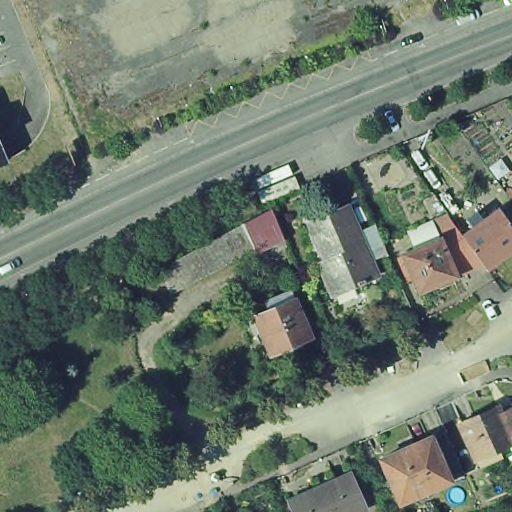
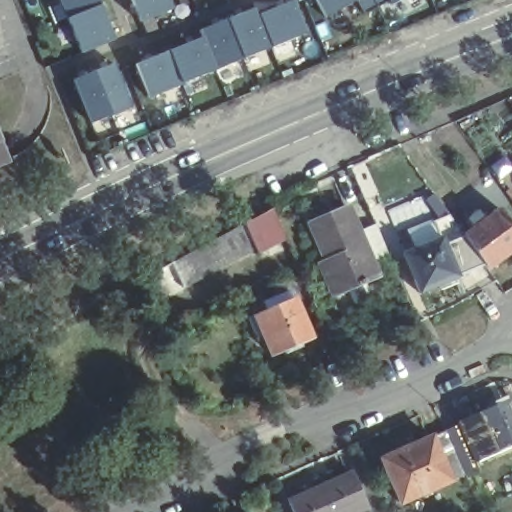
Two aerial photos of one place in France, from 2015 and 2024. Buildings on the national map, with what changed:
new [(113,39),(81,53),(67,19),(59,0),(99,0),(101,5),(113,39)]
new [(140,22),(131,0),(169,0),(172,8),(140,22)]
new [(305,33),(270,48),(217,69),(147,97),(133,64),(203,37),(200,30),(252,8),(257,16),(292,0),(305,33)]
new [(357,0),(325,18),(315,0),(401,0),(391,5),(388,1),(377,7),(363,13),(357,0)]
new [(129,107),(90,124),(72,80),(112,63),(129,107)]
unchanged [(0,147),(5,161),(0,163),(0,147)]
unchanged [(365,275),(367,277),(358,280),(357,278),(333,289),(321,260),(327,257),(310,220),(348,203),(369,251),(365,253),(372,272),(365,275)]
unchanged [(167,265),(244,224),(272,209),(283,236),(256,250),(255,249),(170,294),(165,279),(157,282),(153,272),(160,269),(167,265)]
unchanged [(484,265),(463,236),(473,229),(470,224),(480,216),(484,221),(500,209),(512,226),(512,251),(487,269),(484,265)]
unchanged [(448,215),(463,236),(484,265),(457,276),(440,239),(440,240),(432,222),(448,215)]
unchanged [(402,267),(408,264),(404,255),(440,240),(440,239),(457,276),(452,278),(455,283),(440,288),(438,284),(420,292),(414,279),(408,281),(402,267)]
unchanged [(277,355),(267,331),(260,334),(253,318),(260,316),(281,307),(278,300),(296,292),(299,299),(316,338),(277,355)]
unchanged [(458,424),(498,406),(503,418),(512,414),(512,445),(475,461),(458,424)]
unchanged [(381,460),(432,437),(445,431),(465,474),(464,475),(450,481),(400,503),(381,460)]
unchanged [(346,473),(362,509),(355,512),(288,512),(283,501),(346,473)]

